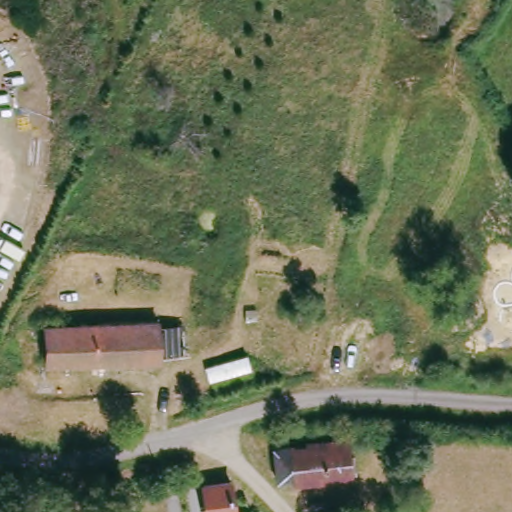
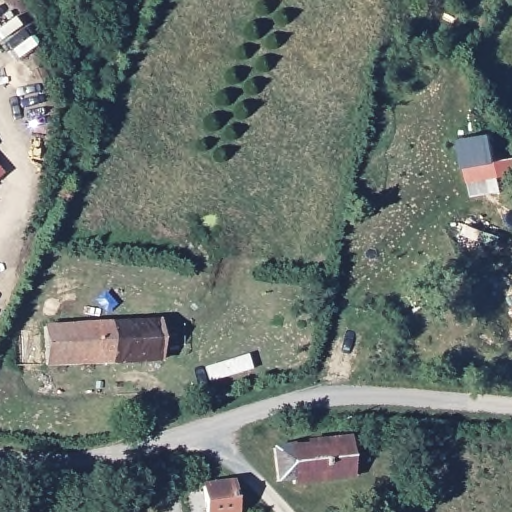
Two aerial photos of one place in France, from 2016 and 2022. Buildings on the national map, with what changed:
new [(495,156),(500,175),(467,181),(465,163),(459,137),(490,131),(495,156)]
unchanged [(157,325),(157,364),(45,368),(43,330),(157,325)]
unchanged [(345,487),(290,494),(289,486),(275,487),(271,459),(282,457),(280,437),(336,430),(345,487)]
unchanged [(232,500),(233,512),(203,512),(200,490),(200,485),(232,481),(233,487),(240,487),(241,500),(232,500)]

